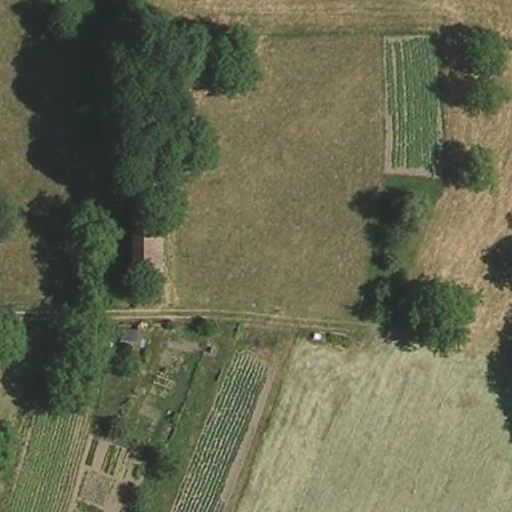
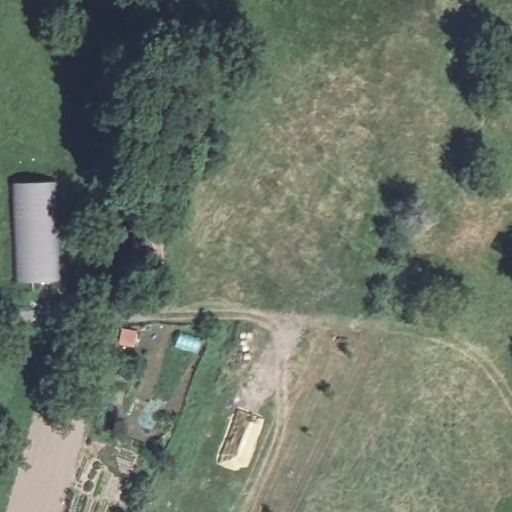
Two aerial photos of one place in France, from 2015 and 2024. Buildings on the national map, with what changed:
new [(15,282),(12,182),(53,180),(57,280),(15,282)]
unchanged [(167,211),(170,288),(136,289),(134,212),(167,211)]

